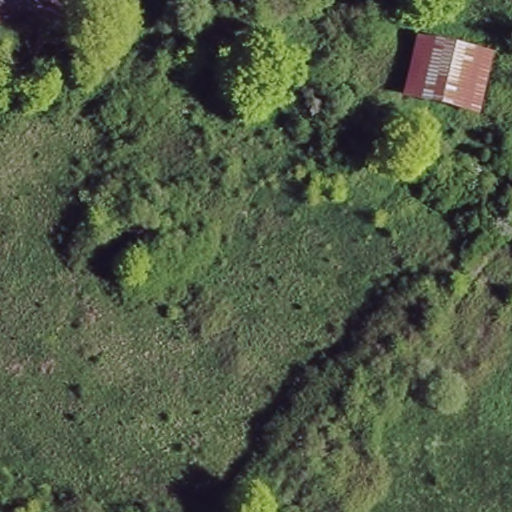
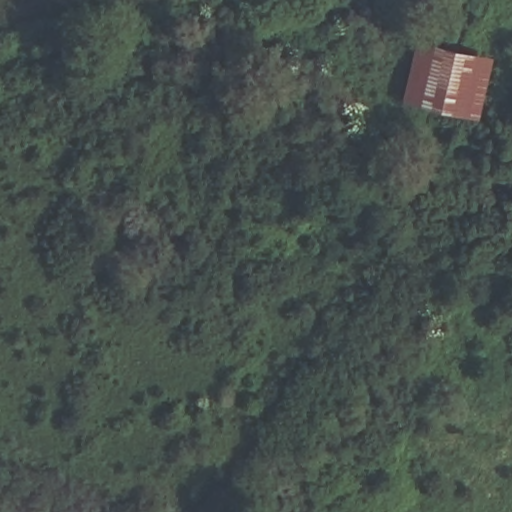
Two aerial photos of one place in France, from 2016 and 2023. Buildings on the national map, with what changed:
unchanged [(483,49),(471,110),(432,102),(445,41),(483,49)]

